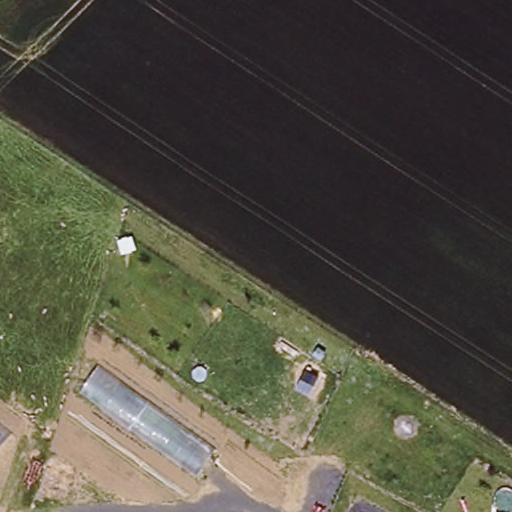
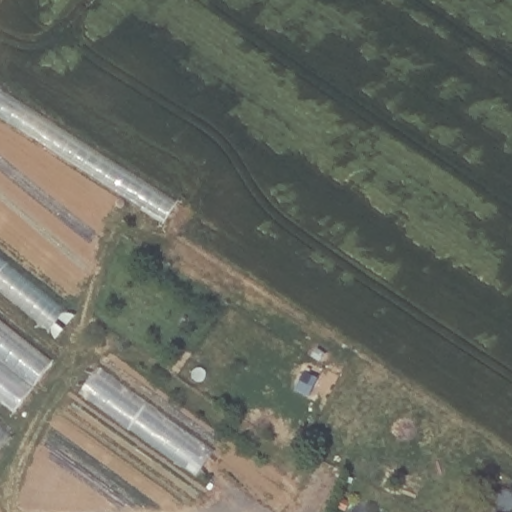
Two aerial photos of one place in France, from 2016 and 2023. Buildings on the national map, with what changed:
new [(0,292),(0,256),(68,312),(50,333),(0,292)]
new [(0,399),(0,317),(55,360),(17,412),(0,399)]
unchanged [(99,367),(214,452),(197,476),(80,393),(99,367)]
unchanged [(0,447),(0,426),(10,435),(0,447)]

